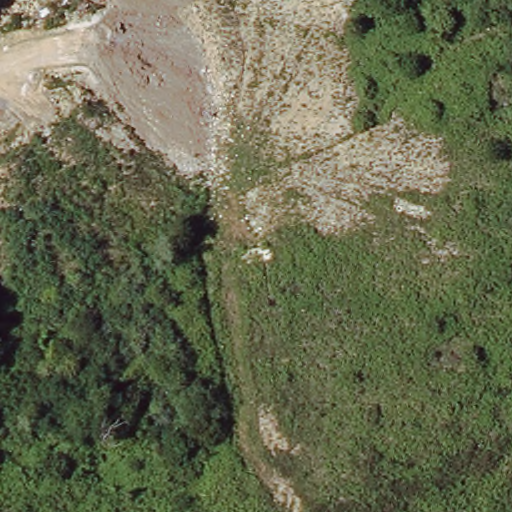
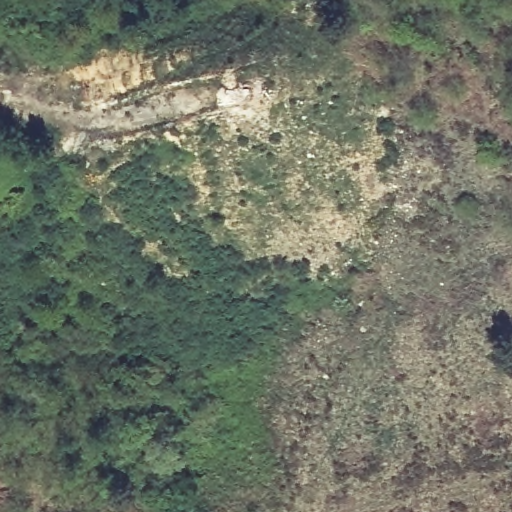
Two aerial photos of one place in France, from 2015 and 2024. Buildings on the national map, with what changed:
[]

